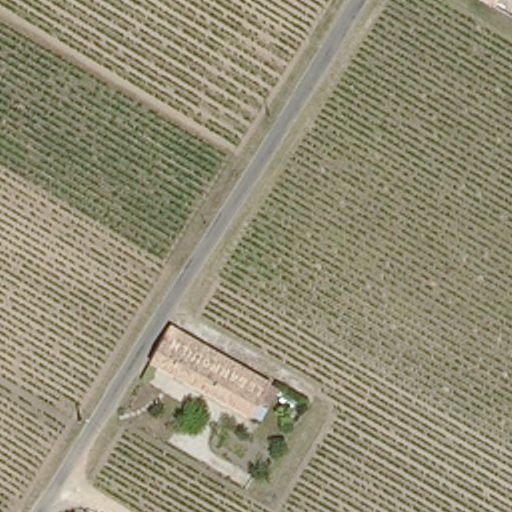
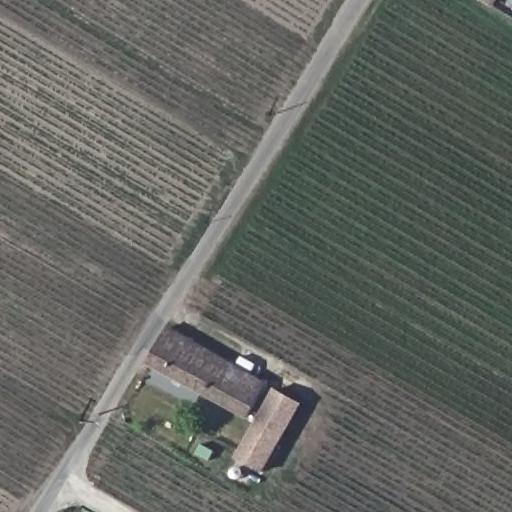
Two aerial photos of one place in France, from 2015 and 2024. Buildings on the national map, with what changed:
unchanged [(484,0),(491,0),(489,3),(484,0)]
unchanged [(268,394),(258,411),(253,408),(247,416),(149,360),(166,332),(268,394)]
new [(303,403),(265,472),(235,458),(275,387),(303,403)]

